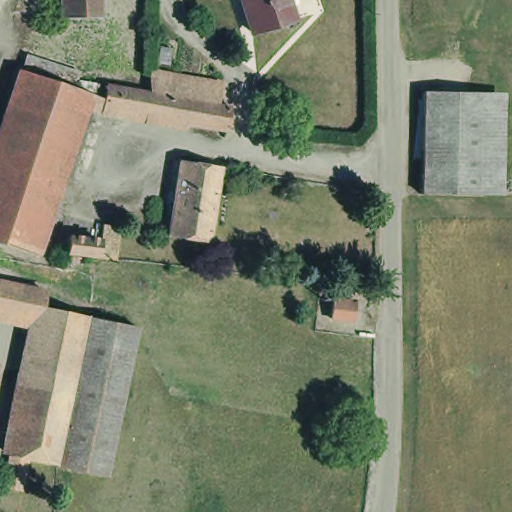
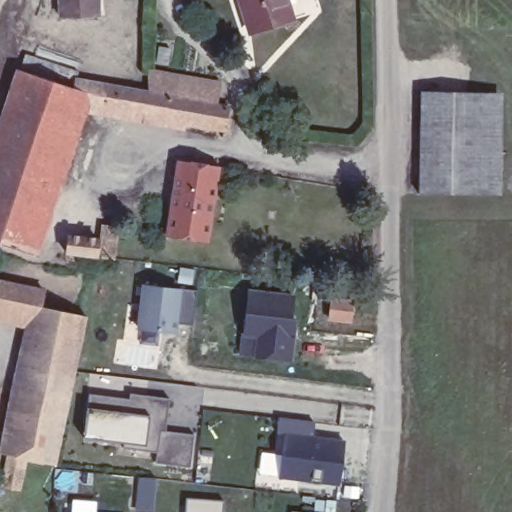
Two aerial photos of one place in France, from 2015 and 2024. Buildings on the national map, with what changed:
unchanged [(107,15),(68,16),(68,0),(106,0),(107,15)]
unchanged [(302,15),(262,27),(252,0),(297,0),(302,15)]
unchanged [(178,48),(177,63),(166,62),(167,45),(178,48)]
unchanged [(0,143),(25,69),(81,90),(82,87),(30,70),(37,55),(88,69),(85,76),(112,83),(157,91),(225,104),(237,107),(233,130),(109,106),(77,99),(50,180),(25,250),(0,241),(0,143)]
unchanged [(225,104),(157,91),(157,89),(157,70),(228,82),(225,101),(225,104)]
unchanged [(427,192),(430,92),(492,94),(488,195),(427,192)]
unchanged [(492,94),(509,95),(507,196),(488,195),(492,94)]
unchanged [(182,156),(222,161),(210,235),(170,229),(182,156)]
unchanged [(50,180),(67,186),(42,256),(25,250),(50,180)]
unchanged [(75,238),(105,241),(107,226),(125,229),(121,260),(104,258),(73,254),(75,238)]
unchanged [(42,327),(27,324),(28,315),(27,315),(10,311),(0,309),(0,280),(0,278),(17,281),(51,288),(47,304),(92,313),(62,462),(30,455),(23,485),(10,482),(16,453),(42,327)]
new [(192,325),(178,322),(176,334),(137,329),(142,283),(182,289),(196,290),(192,325)]
new [(240,355),(248,288),(297,294),(291,362),(240,355)]
unchanged [(357,299),(355,318),(333,316),(335,297),(357,299)]
new [(155,463),(156,453),(143,452),(144,445),(82,438),(87,404),(87,393),(130,398),(131,392),(170,397),(166,430),(195,434),(191,468),(155,463)]
new [(338,486),(278,479),(285,433),(345,439),(338,486)]
new [(157,478),(154,512),(149,512),(133,510),(137,475),(157,478)]
new [(222,500),(222,512),(184,512),(185,496),(222,500)]
new [(292,512),(292,510),(304,512),(292,512)]

